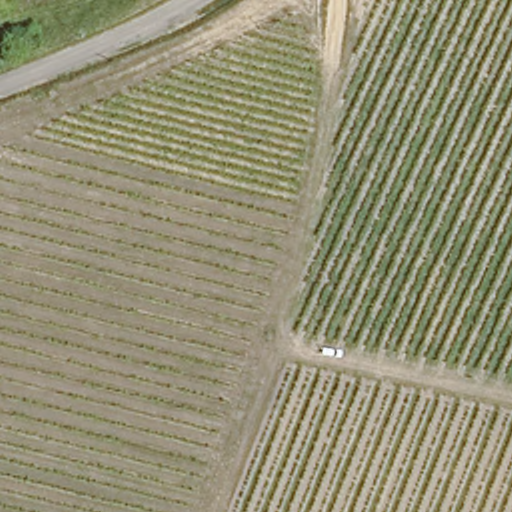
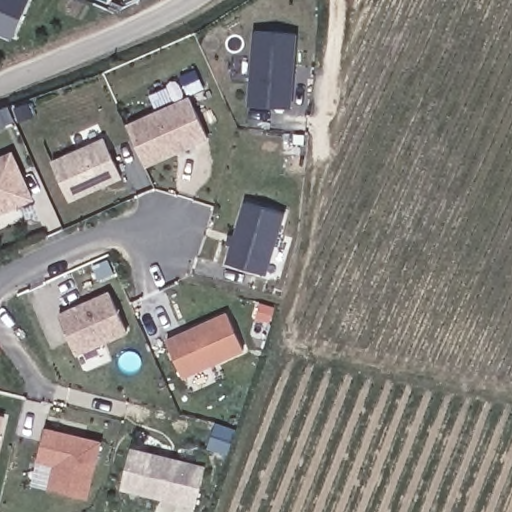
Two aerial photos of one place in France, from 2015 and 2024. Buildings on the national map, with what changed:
new [(0,35),(0,0),(27,0),(10,39),(0,35)]
new [(248,104),(252,29),(297,34),(291,106),(248,104)]
new [(207,139),(145,167),(126,124),(190,95),(207,139)]
new [(70,202),(51,159),(104,136),(122,179),(70,202)]
new [(0,157),(13,151),(33,199),(0,215),(0,157)]
new [(226,244),(229,234),(234,235),(244,203),(286,214),(267,274),(226,263),(231,245),(226,244)]
new [(77,357),(57,314),(110,290),(129,334),(77,357)]
new [(166,339),(227,312),(244,352),(183,379),(166,339)]
new [(0,432),(0,415),(4,416),(0,432)]
new [(86,498),(49,489),(55,464),(37,460),(45,429),(100,443),(86,498)]
new [(131,448),(207,466),(197,508),(121,489),(131,448)]

